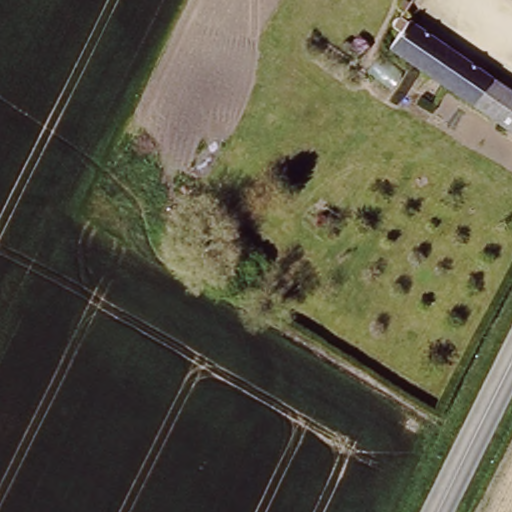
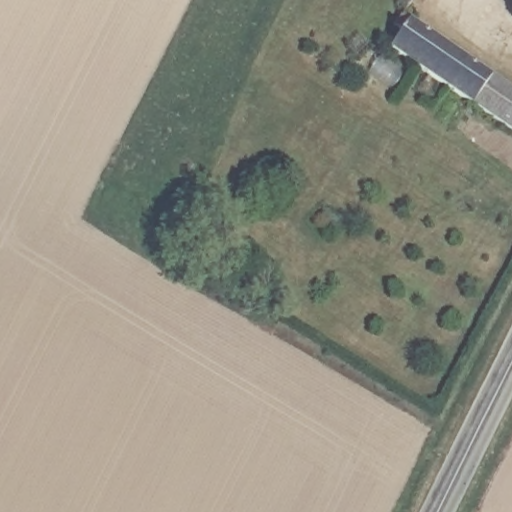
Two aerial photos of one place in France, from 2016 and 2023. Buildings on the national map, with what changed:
unchanged [(395,24),(401,15),(497,81),(480,110),(450,89),(388,48),(402,29),(395,24)]
unchanged [(512,91),(512,131),(480,110),(497,81),(512,91)]

